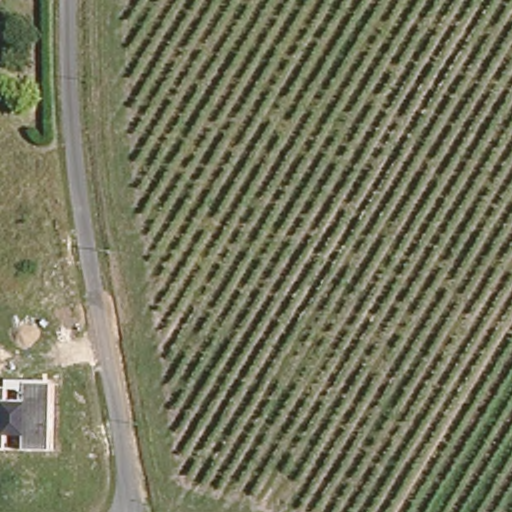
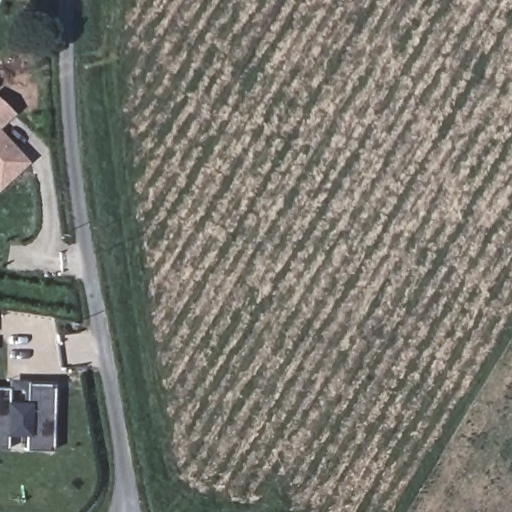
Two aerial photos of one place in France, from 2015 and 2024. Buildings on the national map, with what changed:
new [(21,111),(2,127),(35,166),(4,192),(0,188),(0,92),(21,111)]
unchanged [(50,450),(22,450),(23,436),(5,436),(4,449),(0,449),(0,387),(5,387),(5,381),(51,382),(50,450)]

